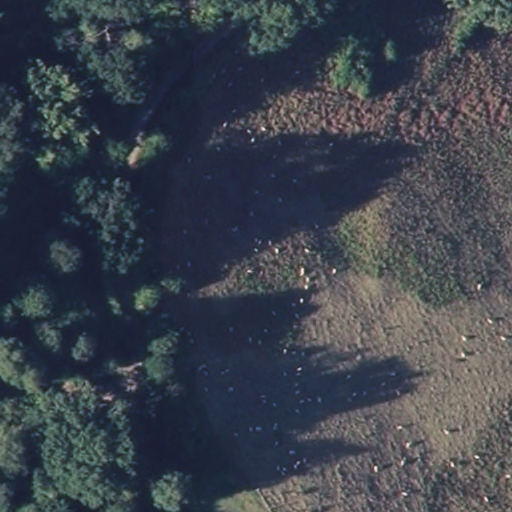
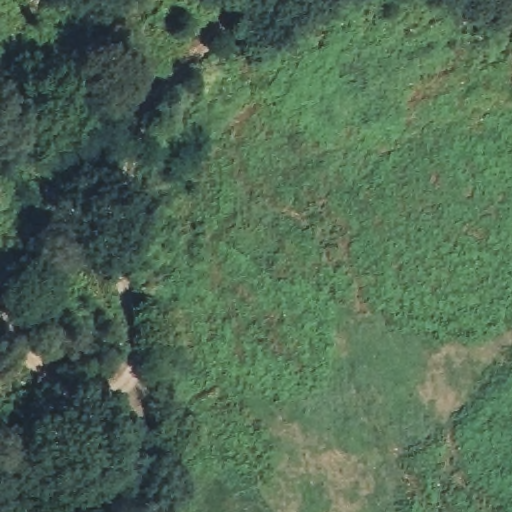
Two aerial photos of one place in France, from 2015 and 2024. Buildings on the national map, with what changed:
[]

